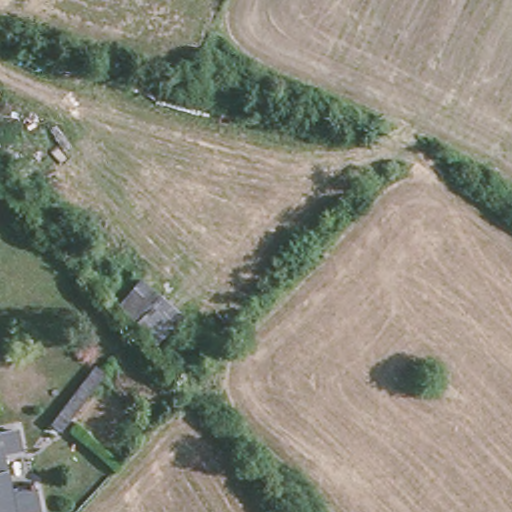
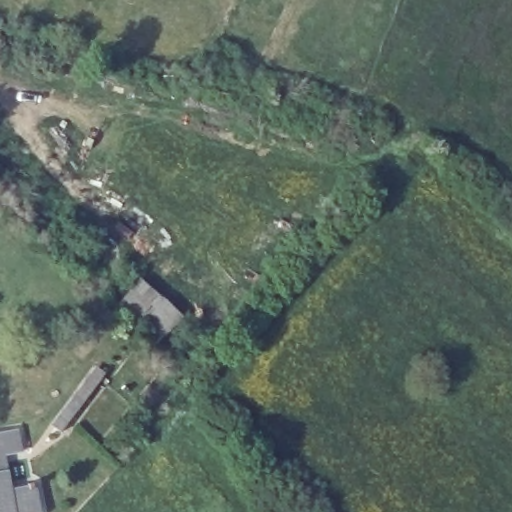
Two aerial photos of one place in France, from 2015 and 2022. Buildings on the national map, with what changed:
unchanged [(20,447),(7,451),(14,480),(0,483),(0,428),(15,425),(20,447)]
unchanged [(0,483),(14,480),(30,476),(35,494),(9,499),(0,501),(0,483)]
unchanged [(0,501),(9,499),(11,512),(0,512),(0,501)]

